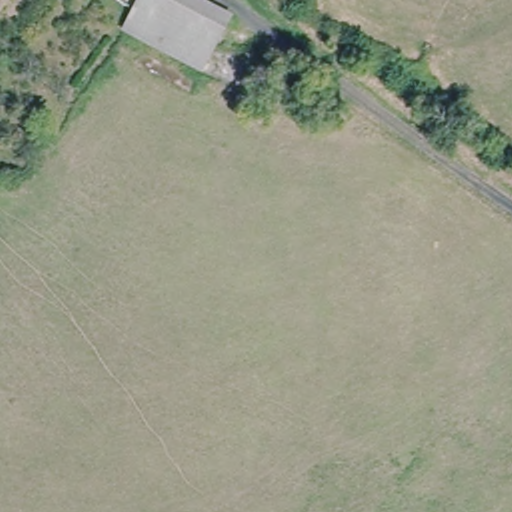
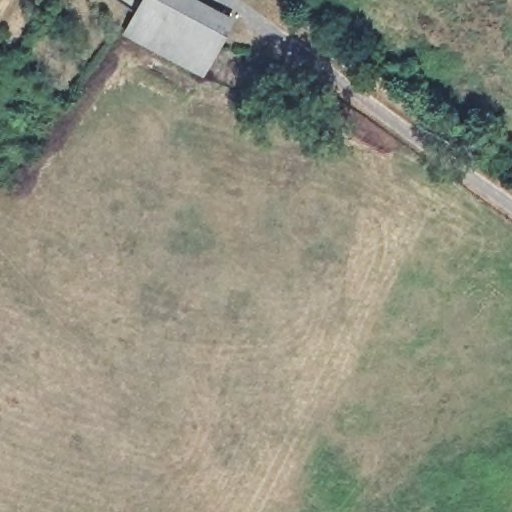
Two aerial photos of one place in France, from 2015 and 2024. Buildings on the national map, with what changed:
unchanged [(129,29),(140,8),(144,0),(204,0),(233,15),(202,69),(129,29)]

